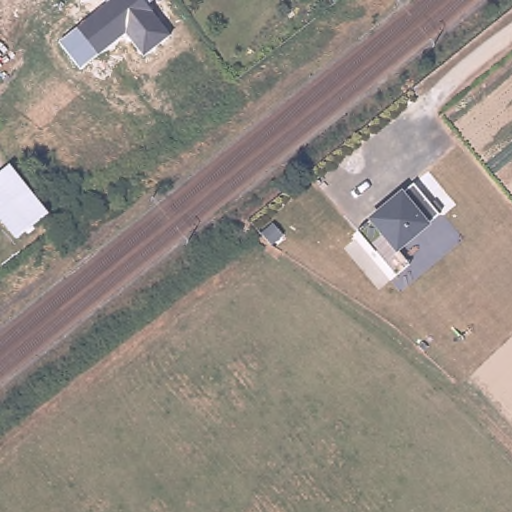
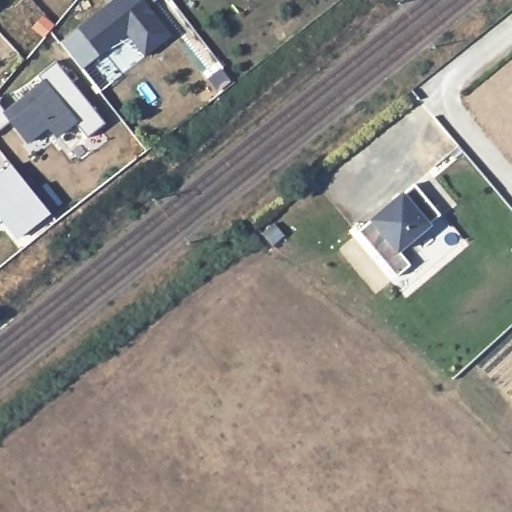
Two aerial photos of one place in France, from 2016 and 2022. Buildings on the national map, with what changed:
unchanged [(79,27),(106,5),(102,0),(154,0),(145,5),(170,37),(144,57),(125,34),(100,54),(81,70),(58,42),(79,27)]
new [(0,105),(6,112),(33,92),(35,95),(46,86),(37,76),(56,61),(106,122),(88,136),(75,120),(58,134),(49,122),(29,140),(12,120),(0,130),(0,105)]
unchanged [(29,242),(21,233),(0,206),(0,172),(14,161),(51,209),(38,220),(45,229),(29,242)]
unchanged [(393,203),(395,205),(401,200),(400,197),(412,186),(438,217),(396,252),(410,267),(395,280),(356,234),(393,203)]

